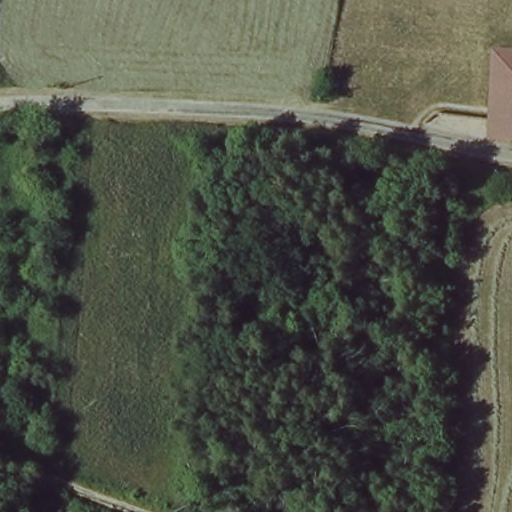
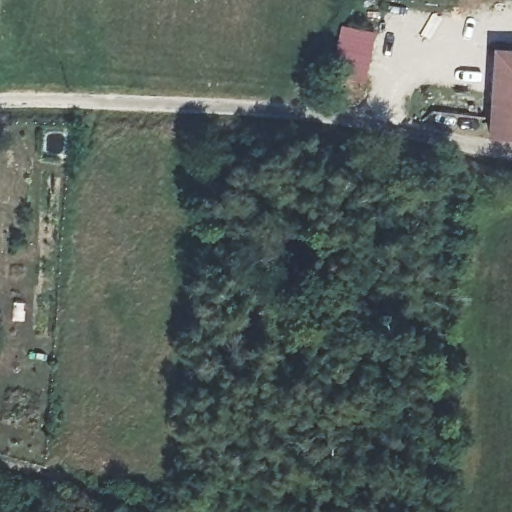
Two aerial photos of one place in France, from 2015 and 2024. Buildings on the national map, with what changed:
new [(373,34),(366,85),(335,80),(343,30),(373,34)]
unchanged [(495,130),(488,129),(493,56),(512,57),(512,132),(495,130)]

